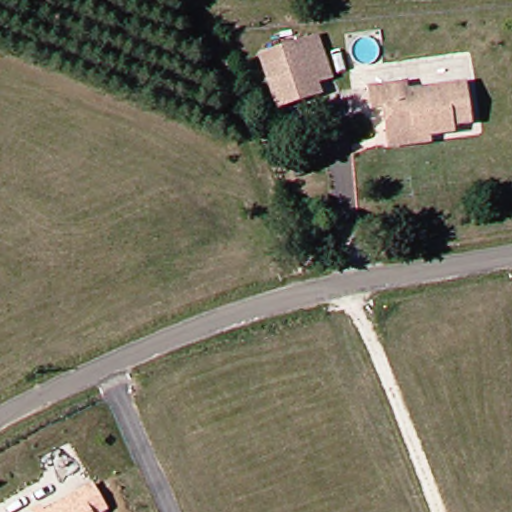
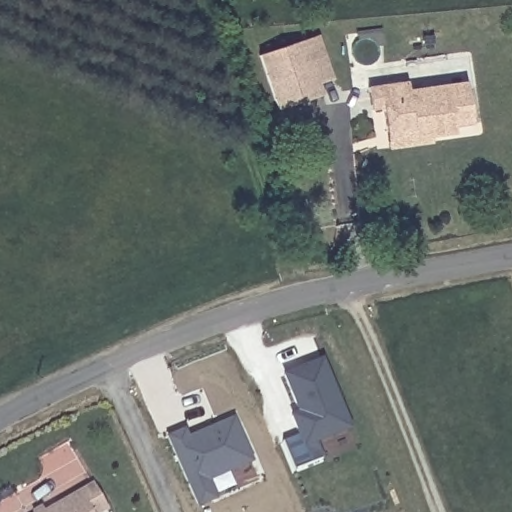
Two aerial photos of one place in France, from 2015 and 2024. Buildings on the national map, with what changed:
unchanged [(282,106),(263,51),(307,35),(322,30),(338,74),(323,79),(326,89),(282,106)]
unchanged [(395,151),(393,136),(390,108),(376,110),(373,88),(414,82),(415,89),(472,81),(478,125),(463,127),(464,135),(441,139),(441,147),(395,151)]
new [(322,460),(292,472),(281,444),(299,436),(290,417),(299,414),(283,376),(322,361),(348,430),(355,447),(322,460)]
new [(167,436),(185,429),(189,436),(234,416),(254,462),(210,481),(217,499),(198,507),(167,436)]
unchanged [(41,506),(43,510),(93,483),(108,510),(105,512),(32,512),(31,511),(41,506)]

